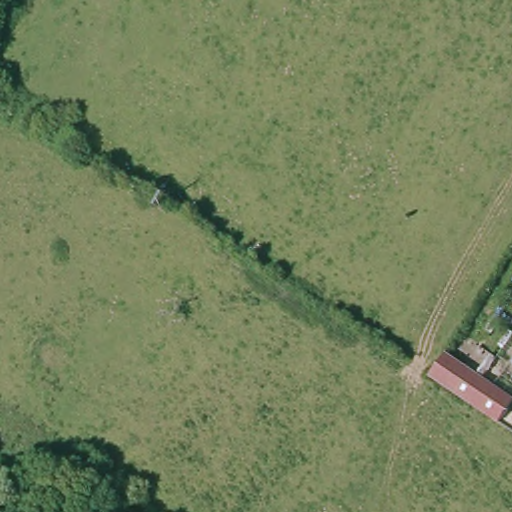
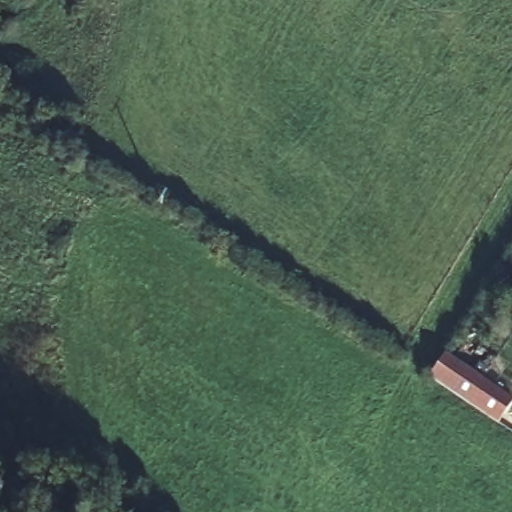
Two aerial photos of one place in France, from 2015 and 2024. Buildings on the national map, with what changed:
unchanged [(512,399),(512,407),(501,423),(430,376),(445,354),(512,399)]

